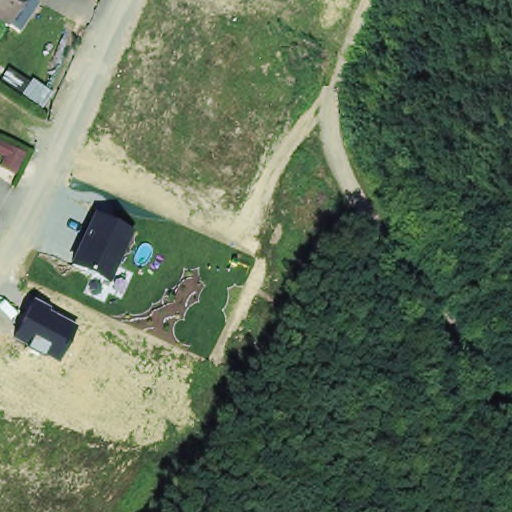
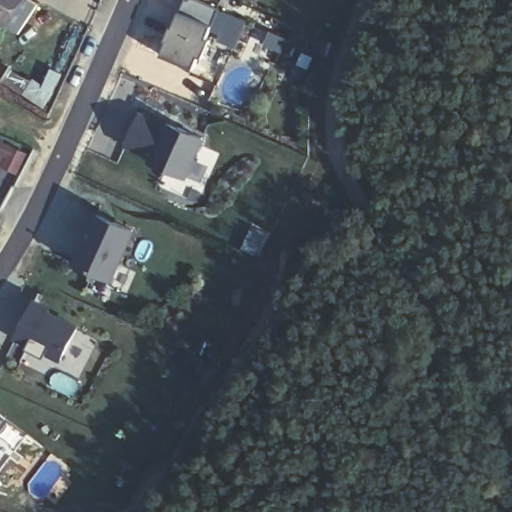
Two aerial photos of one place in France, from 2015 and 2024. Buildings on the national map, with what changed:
unchanged [(25,0),(39,9),(21,38),(0,24),(0,0),(25,0)]
new [(213,25),(207,39),(211,40),(203,57),(199,56),(194,67),(163,54),(181,12),(186,0),(204,0),(219,6),(213,25)]
new [(216,41),(220,34),(213,31),(221,11),(246,20),(235,50),(216,41)]
new [(141,115),(178,132),(180,128),(204,139),(186,179),(152,163),(154,158),(127,145),(141,115)]
unchanged [(12,149),(25,154),(18,171),(4,165),(12,149)]
unchanged [(71,262),(95,212),(134,229),(110,282),(71,262)]
unchanged [(14,338),(35,299),(52,306),(50,311),(78,326),(60,361),(14,338)]

